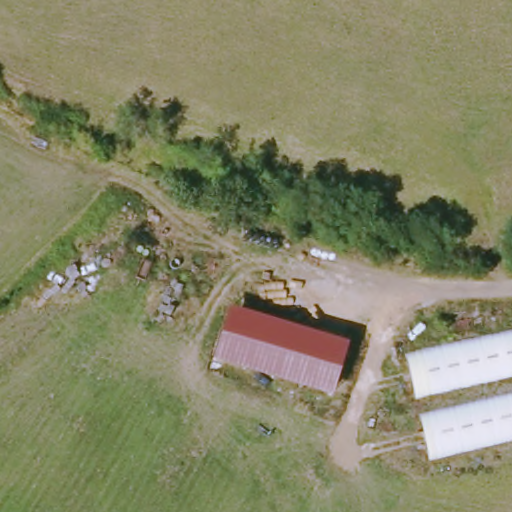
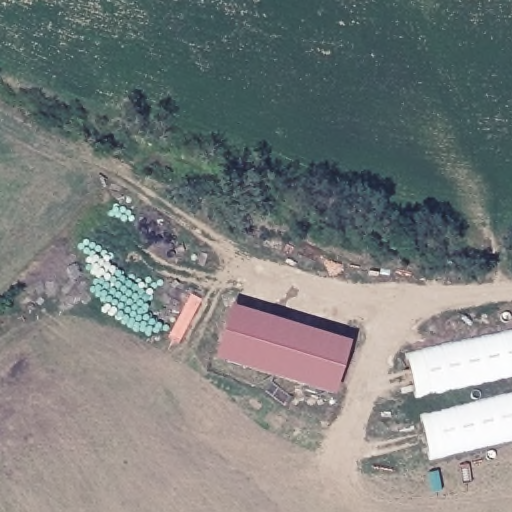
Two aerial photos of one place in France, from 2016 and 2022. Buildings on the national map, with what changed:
unchanged [(348,341),(332,396),(212,359),(230,305),(348,341)]
unchanged [(512,332),(512,375),(410,399),(398,356),(512,332)]
unchanged [(512,397),(512,440),(425,460),(415,416),(512,397)]

